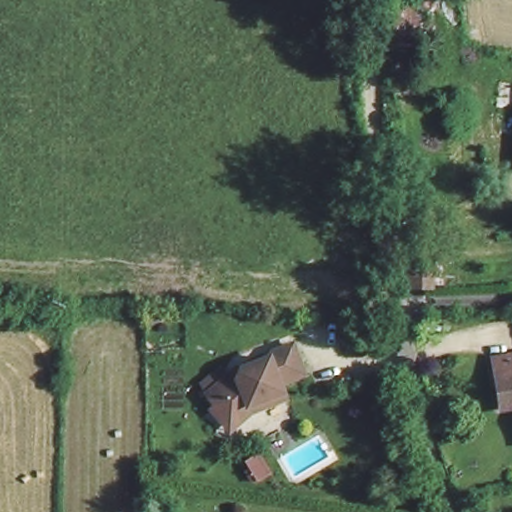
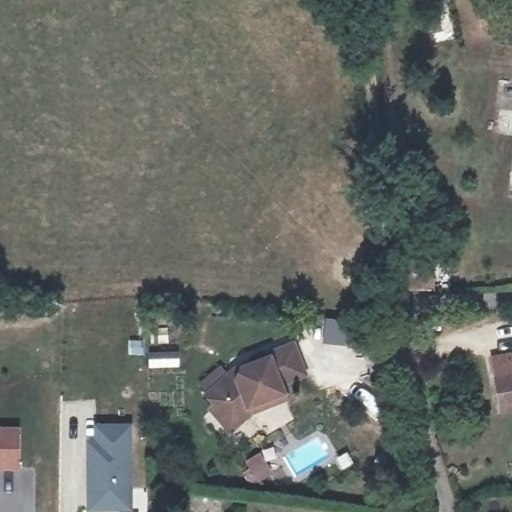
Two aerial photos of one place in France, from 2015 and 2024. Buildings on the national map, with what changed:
unchanged [(430,258),(438,258),(443,286),(431,286),(413,287),(411,259),(430,258)]
unchanged [(224,422),(208,402),(212,397),(200,373),(216,360),(233,370),(292,336),(305,365),(281,376),(284,383),(274,388),(278,391),(269,396),(233,416),(224,422)]
unchanged [(502,409),(496,379),(512,376),(512,407),(502,409)]
new [(93,424),(131,423),(132,511),(86,512),(86,440),(93,439),(93,424)]
new [(19,470),(0,470),(0,426),(20,426),(19,470)]

